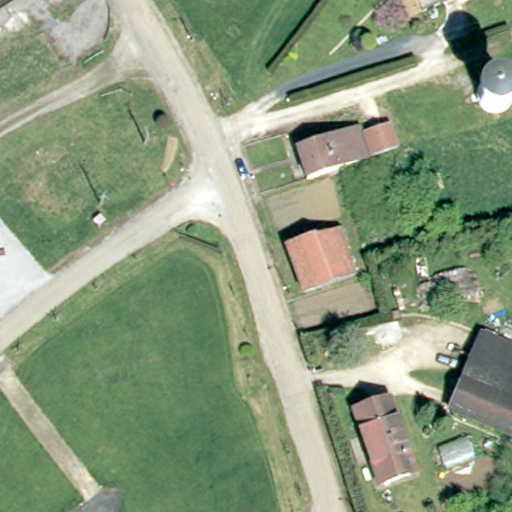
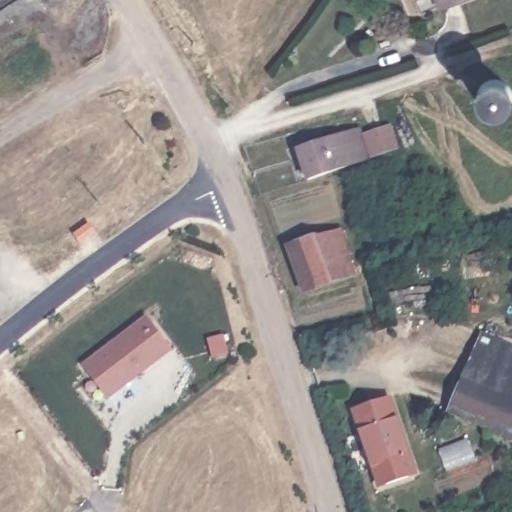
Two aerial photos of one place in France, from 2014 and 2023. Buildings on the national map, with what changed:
unchanged [(374,156),(365,129),(383,124),(393,150),(374,156)]
unchanged [(299,149),(359,127),(369,159),(343,168),(308,179),(299,149)]
unchanged [(316,233),(318,238),(342,229),(356,274),(305,291),(288,243),(316,233)]
new [(173,350),(108,400),(81,365),(146,314),(173,350)]
unchanged [(443,415),(478,325),(512,338),(512,439),(443,415)]
unchanged [(389,398),(414,473),(379,485),(355,410),(389,398)]

